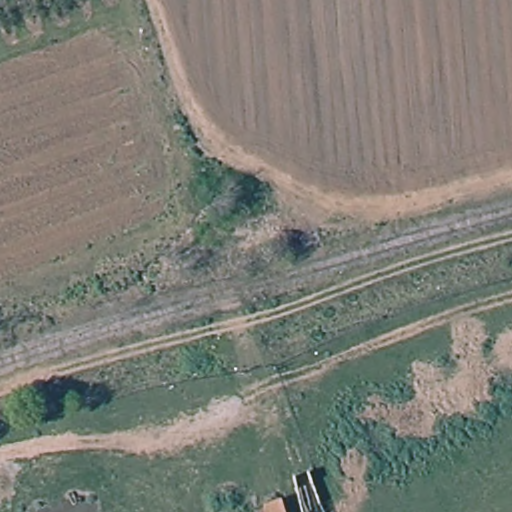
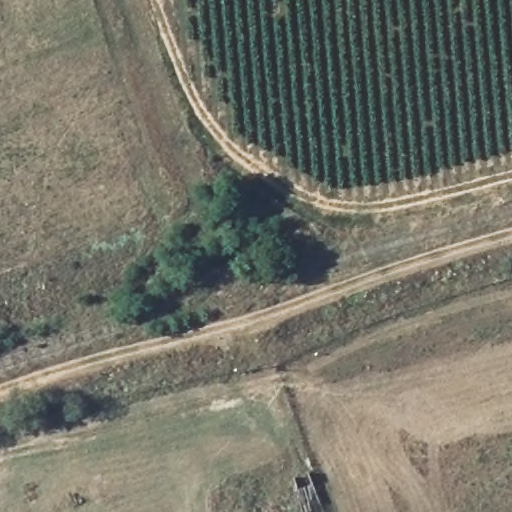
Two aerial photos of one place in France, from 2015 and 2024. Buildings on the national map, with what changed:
unchanged [(268,512),(266,505),(285,499),(289,512),(268,512)]

